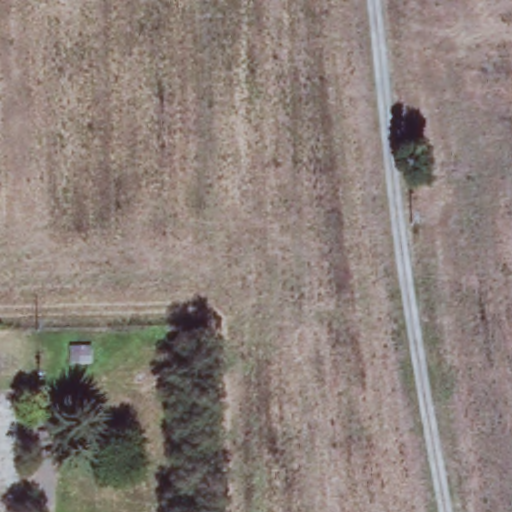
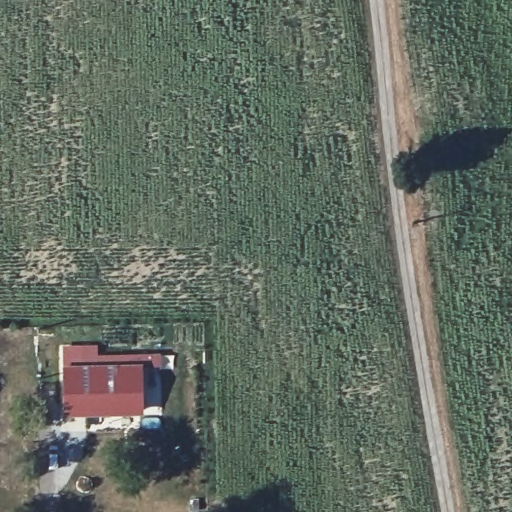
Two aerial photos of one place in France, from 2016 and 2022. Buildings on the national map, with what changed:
new [(91,362),(71,362),(71,347),(91,346),(91,362)]
new [(63,415),(62,366),(141,363),(142,413),(63,415)]

